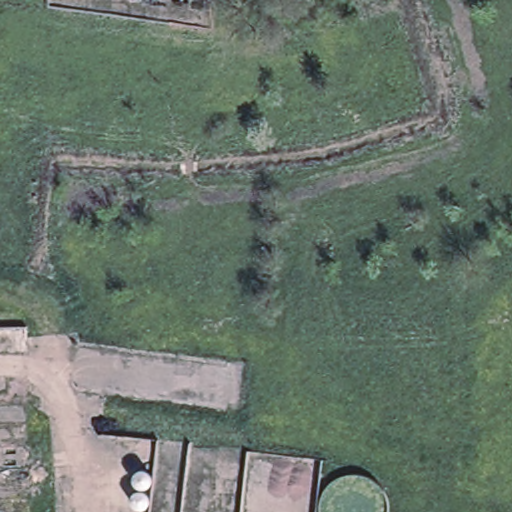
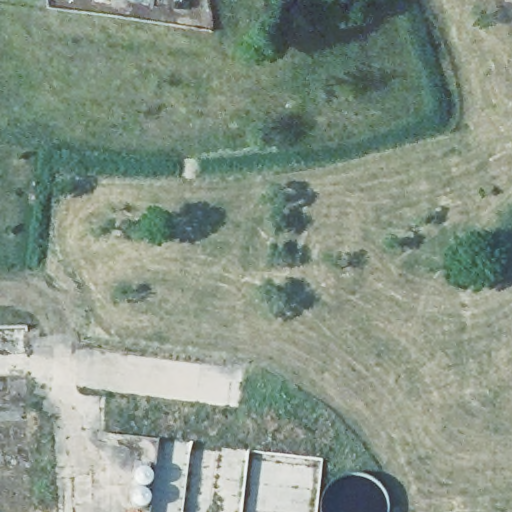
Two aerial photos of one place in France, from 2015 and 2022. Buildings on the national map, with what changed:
unchanged [(24,395),(24,398),(25,428),(25,436),(26,471),(27,512),(0,512),(0,330),(23,329),(24,395)]

